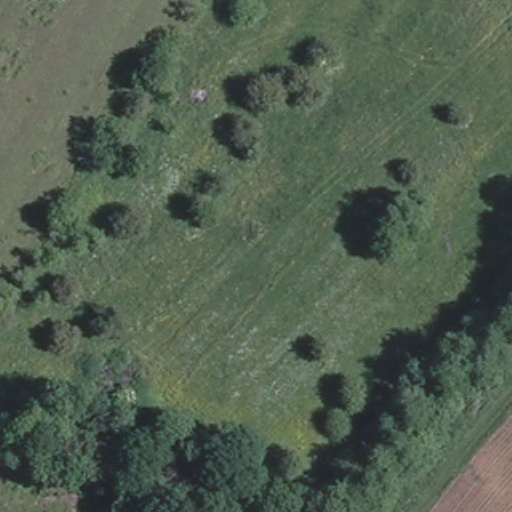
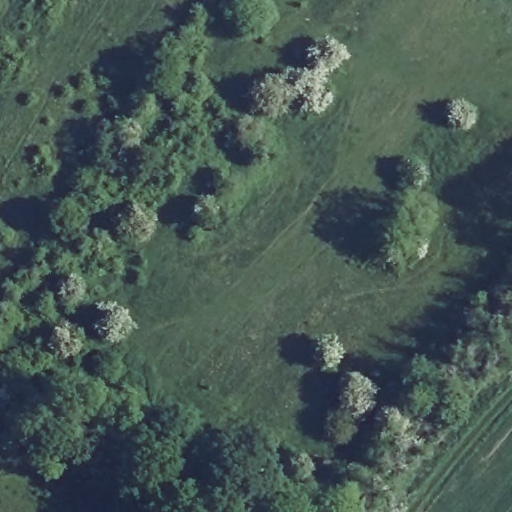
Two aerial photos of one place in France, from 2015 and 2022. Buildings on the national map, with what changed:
[]

